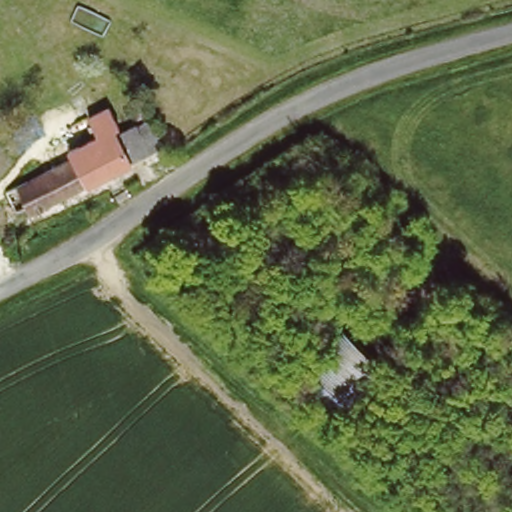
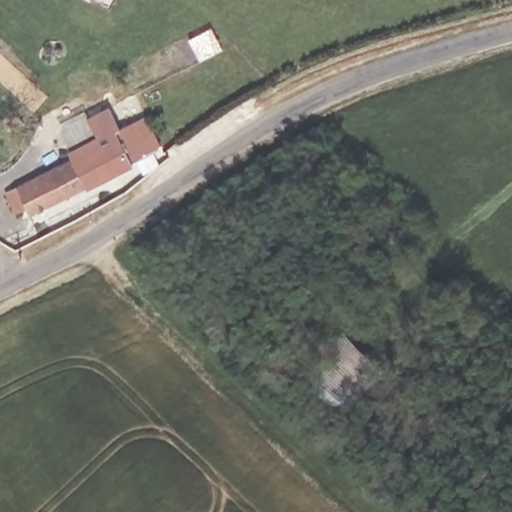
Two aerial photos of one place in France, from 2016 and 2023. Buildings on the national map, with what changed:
unchanged [(118,125),(143,113),(162,150),(116,173),(119,180),(109,185),(106,178),(29,217),(25,209),(16,214),(6,195),(75,160),(71,155),(101,139),(91,120),(110,110),(118,125)]
unchanged [(386,370),(352,408),(307,368),(341,330),(386,370)]

